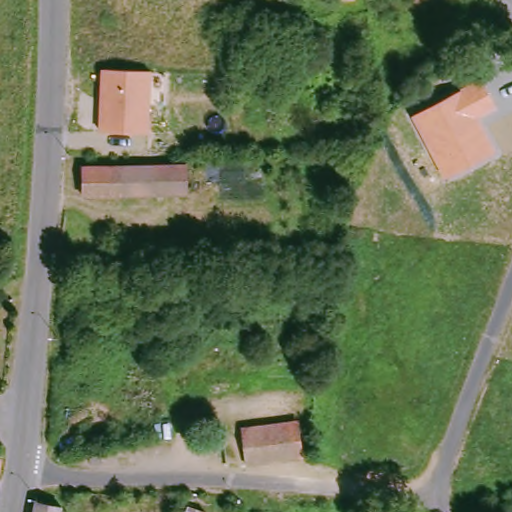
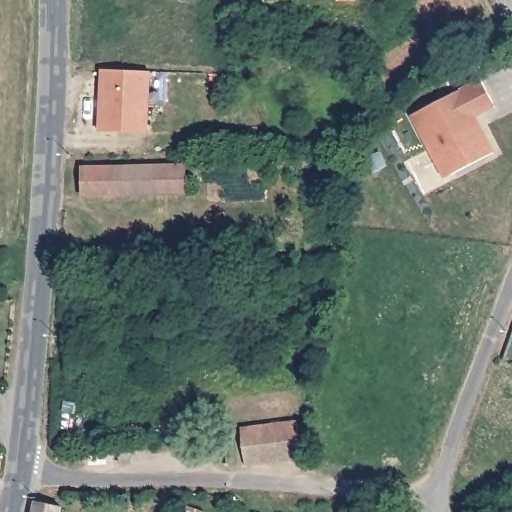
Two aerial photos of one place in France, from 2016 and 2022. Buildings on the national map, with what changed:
unchanged [(152,70),(150,132),(96,130),(99,67),(152,70)]
unchanged [(479,117),(496,150),(445,179),(410,115),(482,77),(496,108),(479,117)]
unchanged [(190,197),(87,197),(87,170),(190,169),(190,197)]
unchanged [(301,458),(250,465),(244,427),(296,420),(301,458)]
unchanged [(225,463),(218,464),(215,437),(222,436),(225,463)]
unchanged [(1,475),(0,475),(0,461),(3,461),(1,475)]
unchanged [(60,505),(58,512),(33,512),(36,500),(60,505)]
unchanged [(190,509),(199,512),(189,512),(190,509)]

